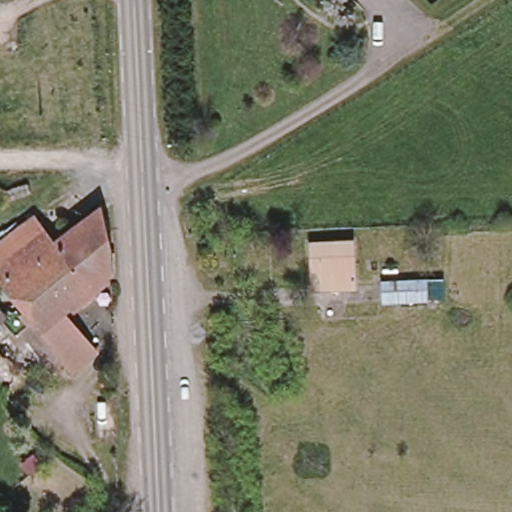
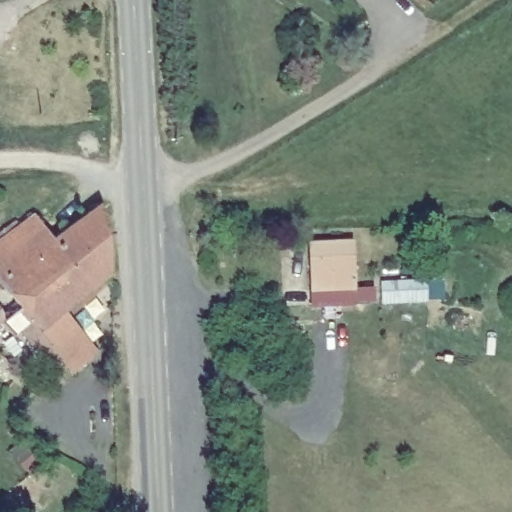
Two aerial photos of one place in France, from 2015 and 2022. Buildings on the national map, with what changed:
unchanged [(55,245),(98,207),(105,216),(108,276),(64,316),(92,355),(70,372),(64,366),(55,355),(40,331),(20,306),(0,282),(0,246),(33,217),(55,245)]
unchanged [(307,241),(347,239),(349,268),(350,283),(309,285),(308,269),(307,241)]
unchanged [(430,277),(431,300),(383,301),(383,279),(430,277)]
unchanged [(45,366),(48,363),(29,342),(9,323),(0,332),(0,305),(8,316),(20,306),(40,331),(55,355),(64,366),(53,375),(45,366)]

